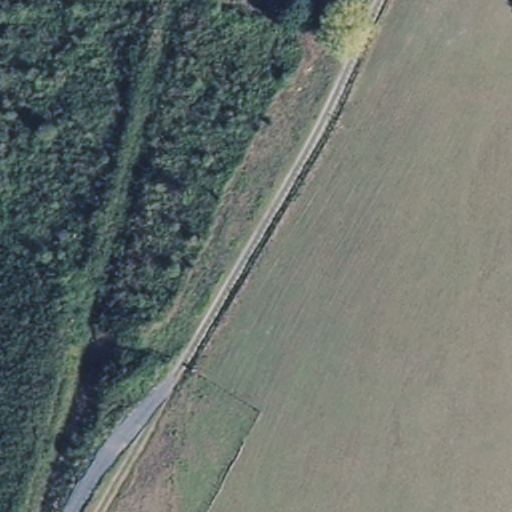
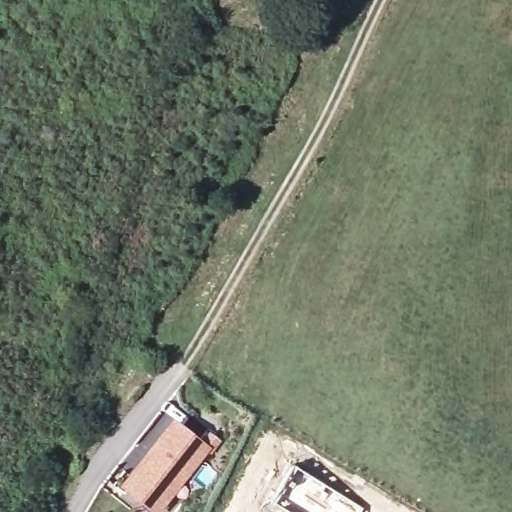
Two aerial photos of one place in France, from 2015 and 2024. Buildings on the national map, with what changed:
new [(176,426),(206,452),(154,512),(153,512),(137,497),(124,486),(129,481),(176,426)]
new [(293,465),(361,507),(359,512),(289,512),(272,502),(293,465)]

